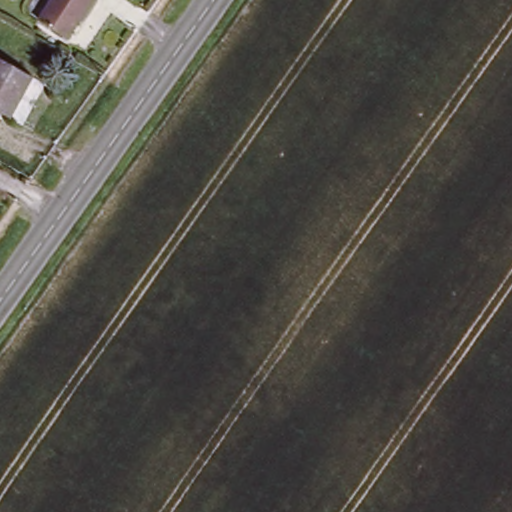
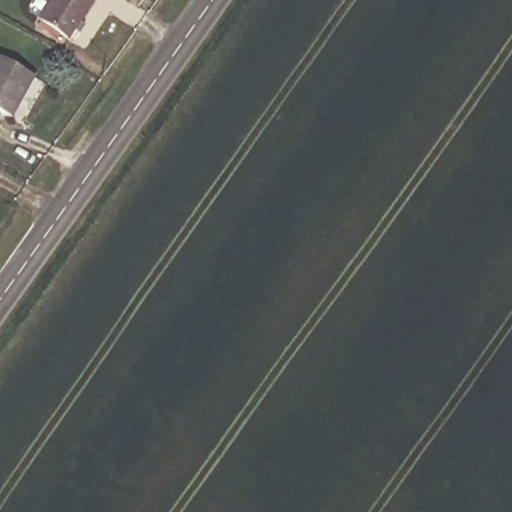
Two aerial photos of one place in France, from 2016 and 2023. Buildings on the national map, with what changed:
unchanged [(68,38),(41,19),(53,0),(92,0),(68,38)]
unchanged [(33,77),(9,116),(0,111),(0,56),(33,77)]

